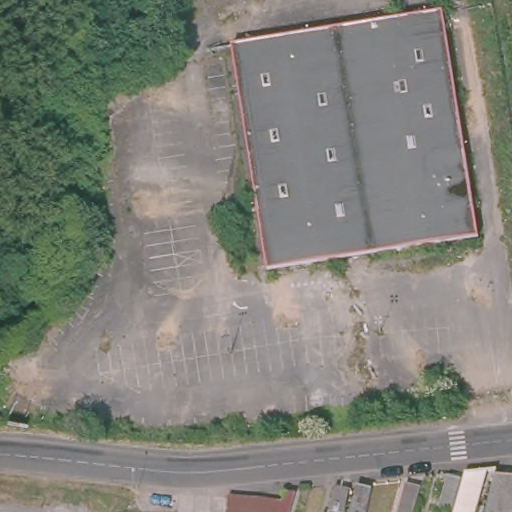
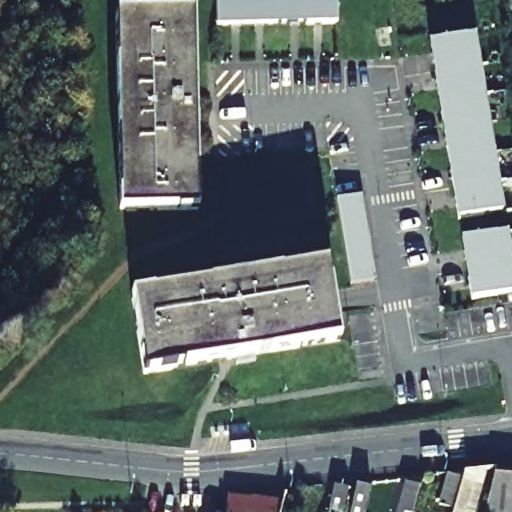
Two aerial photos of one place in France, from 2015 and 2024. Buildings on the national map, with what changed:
unchanged [(219,22),(218,0),(339,0),(339,19),(219,22)]
unchanged [(198,7),(201,206),(122,207),(118,9),(198,7)]
demolished [(453,211),(256,81),(233,65),(230,43),(441,13),(469,209),(453,211)]
new [(459,218),(429,42),(476,34),(504,210),(459,218)]
demolished [(233,65),(256,81),(453,211),(257,239),(233,65)]
new [(352,283),(337,197),(362,193),(377,278),(352,283)]
new [(471,299),(461,238),(507,230),(512,259),(512,292),(471,299)]
new [(144,370),(132,295),(326,264),(338,338),(144,370)]
unchanged [(455,505),(441,501),(449,471),(464,475),(466,468),(488,465),(475,512),(453,512),(455,505)]
unchanged [(496,473),(512,472),(512,512),(487,512),(496,473)]
unchanged [(361,480),(374,483),(367,512),(352,512),(361,480)]
unchanged [(399,507),(406,480),(420,483),(413,512),(398,512),(399,507)]
unchanged [(332,510),(339,483),(351,485),(345,512),(339,512),(332,510)]
unchanged [(281,499),(284,489),(293,487),(287,512),(278,512),(281,499)]
unchanged [(228,498),(228,494),(281,499),(278,512),(227,512),(228,498)]

